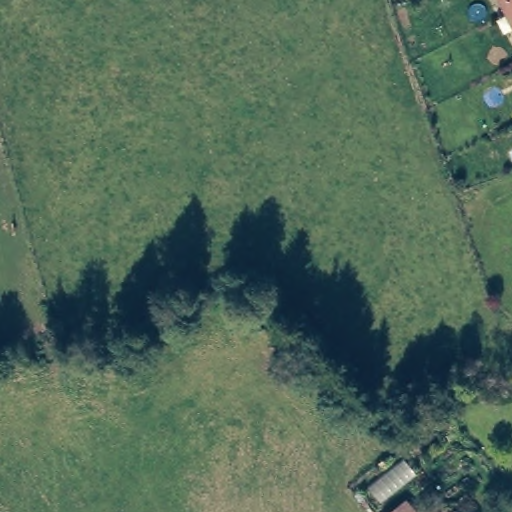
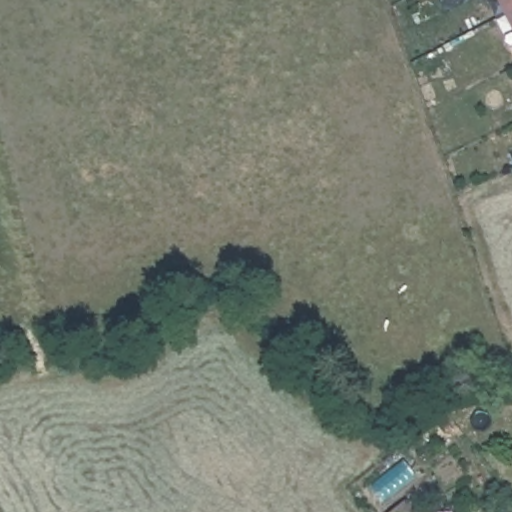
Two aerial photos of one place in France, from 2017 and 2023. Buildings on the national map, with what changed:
unchanged [(499,0),(512,0),(512,26),(499,0)]

